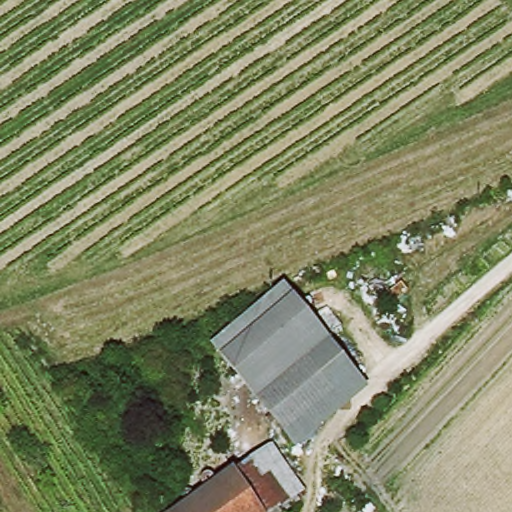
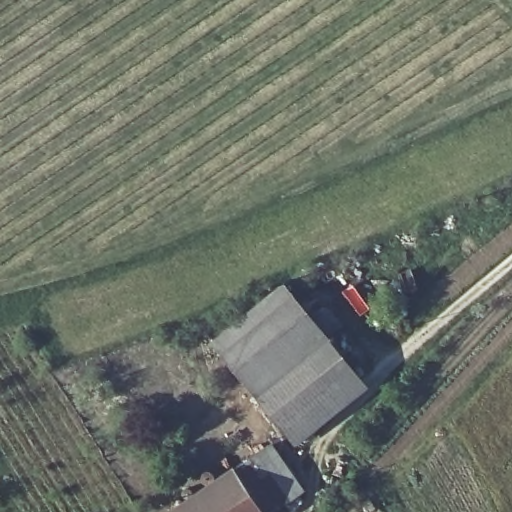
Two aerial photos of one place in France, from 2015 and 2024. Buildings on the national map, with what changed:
unchanged [(296,447),(212,343),(285,283),(371,386),(296,447)]
unchanged [(230,477),(276,443),(310,488),(278,512),(180,512),(230,477)]

